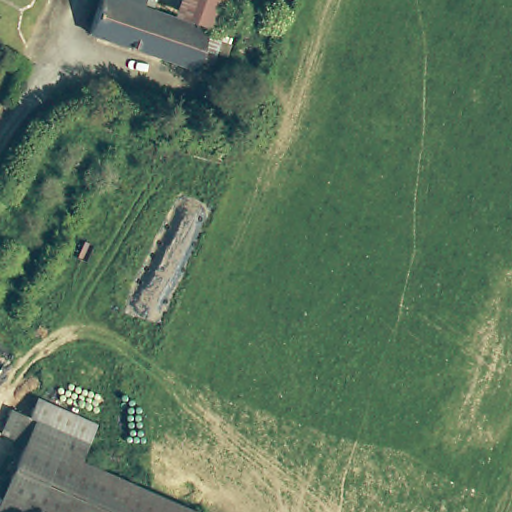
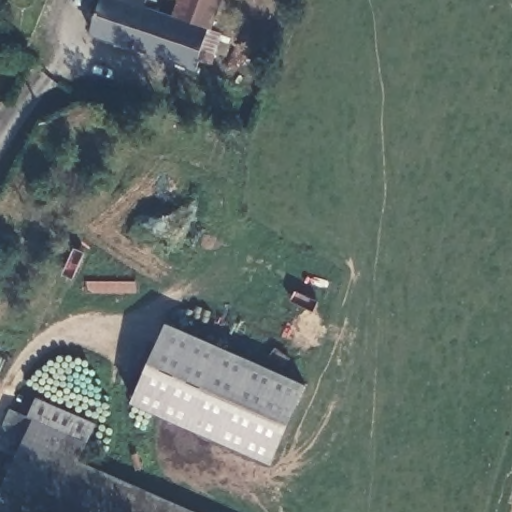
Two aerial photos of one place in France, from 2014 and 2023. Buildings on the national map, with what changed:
unchanged [(175,9),(217,25),(225,27),(210,72),(187,61),(181,58),(149,47),(82,26),(92,0),(150,0),(175,9)]
unchanged [(178,0),(226,0),(217,25),(175,9),(178,0)]
new [(272,463),(132,401),(167,321),(308,383),(272,463)]
unchanged [(31,409),(39,391),(96,416),(81,451),(27,426),(23,433),(2,425),(13,401),(31,409)]
unchanged [(27,426),(81,451),(193,501),(197,503),(193,512),(0,512),(0,485),(23,433),(27,426)]
unchanged [(217,512),(193,512),(197,503),(217,512)]

